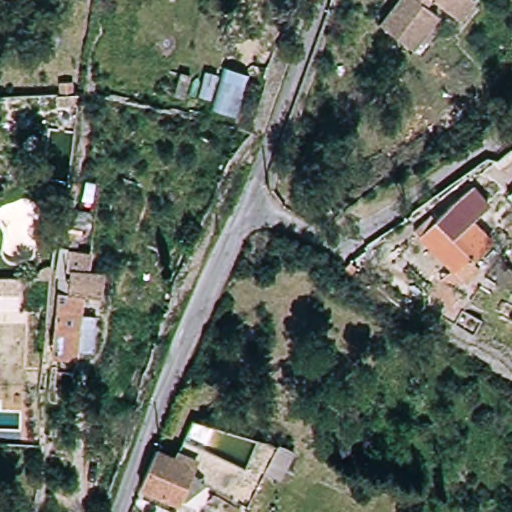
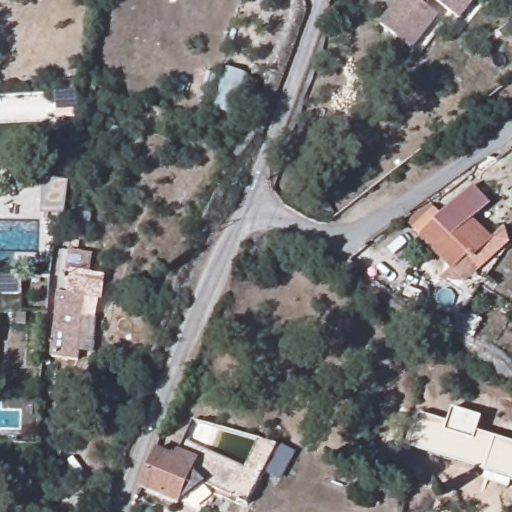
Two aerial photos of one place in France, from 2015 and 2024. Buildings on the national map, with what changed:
unchanged [(428,0),(422,8),(435,19),(410,53),(374,25),(393,0),(428,0)]
unchanged [(455,21),(428,0),(469,0),(471,1),(455,21)]
unchanged [(512,187),(512,204),(504,195),(512,187)]
unchanged [(494,242),(477,259),(470,256),(454,273),(414,233),(430,216),(437,222),(457,203),(494,242)]
unchanged [(66,236),(98,240),(92,278),(59,273),(66,236)]
unchanged [(101,282),(99,306),(85,304),(80,365),(49,363),(54,290),(67,292),(69,281),(101,282)]
demolished [(480,331),(461,318),(469,304),(489,316),(480,331)]
new [(420,413),(449,422),(453,407),(482,418),(477,431),(512,442),(512,481),(410,448),(420,413)]
unchanged [(172,457),(178,444),(239,464),(252,436),(273,442),(243,499),(176,475),(165,503),(130,488),(147,448),(172,457)]

